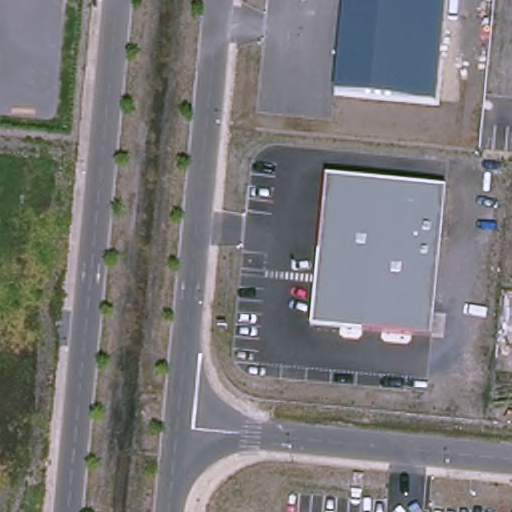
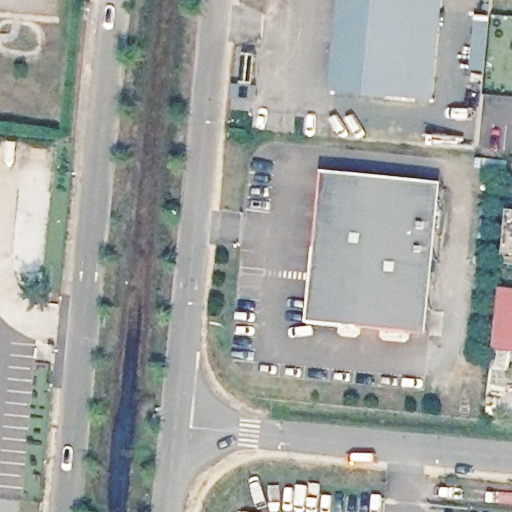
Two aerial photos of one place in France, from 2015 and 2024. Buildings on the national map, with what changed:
unchanged [(433,100),(334,87),(342,0),(444,0),(433,100)]
unchanged [(431,338),(311,326),(327,175),(445,188),(431,338)]
new [(495,352),(501,290),(512,290),(512,354),(495,352)]

